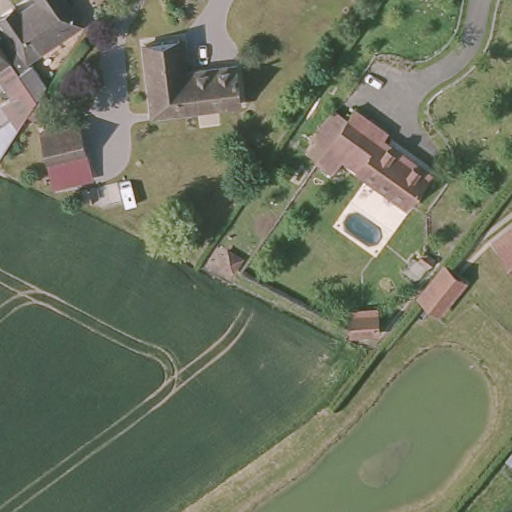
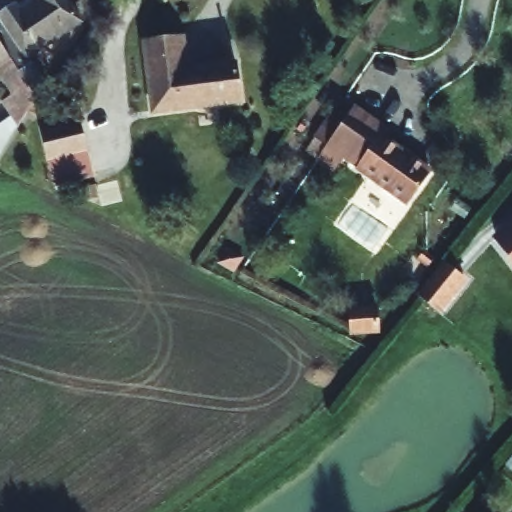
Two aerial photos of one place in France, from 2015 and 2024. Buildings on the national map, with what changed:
unchanged [(23,52),(39,78),(30,89),(30,90),(0,47),(0,11),(12,3),(15,8),(26,0),(58,0),(70,19),(23,52)]
unchanged [(145,41),(177,36),(184,70),(230,63),(237,99),(237,100),(159,111),(143,42),(145,41)]
unchanged [(10,117),(2,102),(9,97),(0,82),(0,47),(30,90),(10,117)]
unchanged [(365,114),(403,142),(399,151),(434,176),(440,169),(450,177),(417,217),(351,169),(342,181),(322,167),(365,114)]
unchanged [(97,177),(55,188),(42,125),(80,117),(97,177)]
unchanged [(495,234),(512,219),(512,253),(495,234)]
unchanged [(441,302),(422,287),(447,256),(448,255),(467,271),(460,280),(441,302)]
unchanged [(385,327),(356,326),(355,306),(384,306),(385,327)]

